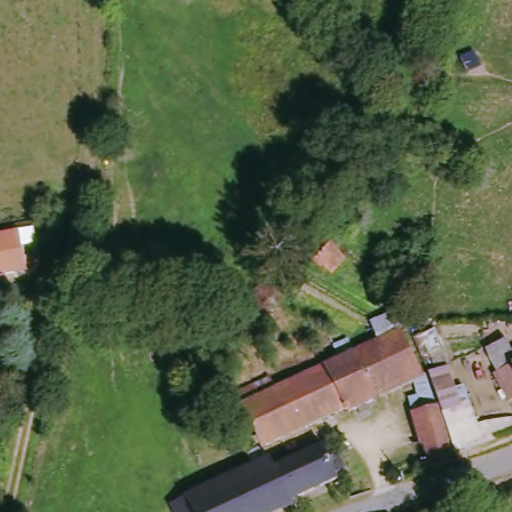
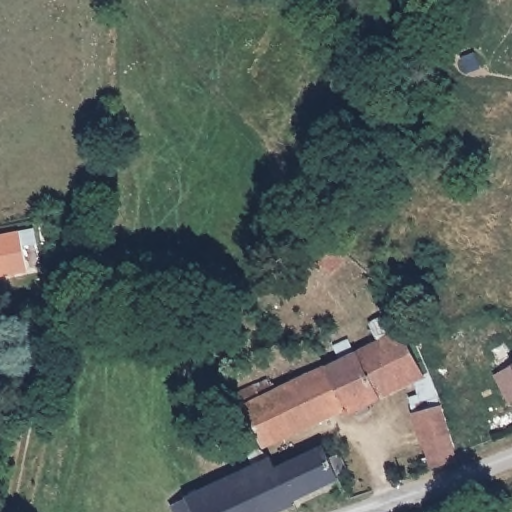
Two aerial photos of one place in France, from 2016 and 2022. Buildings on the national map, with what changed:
unchanged [(20,234),(27,271),(0,275),(0,237),(20,234)]
unchanged [(323,275),(305,260),(325,237),(345,255),(323,275)]
unchanged [(257,388),(263,396),(404,334),(425,375),(348,411),(345,405),(264,446),(237,396),(257,388)]
unchanged [(482,353),(505,338),(512,347),(512,404),(507,406),(482,353)]
unchanged [(456,462),(434,472),(430,448),(422,448),(417,415),(440,410),(456,462)]
unchanged [(326,452),(337,452),(343,457),(344,464),(340,478),(294,497),(295,506),(282,512),(178,512),(175,507),(260,467),(252,458),(260,450),(278,466),(280,472),(323,445),(326,452)]

